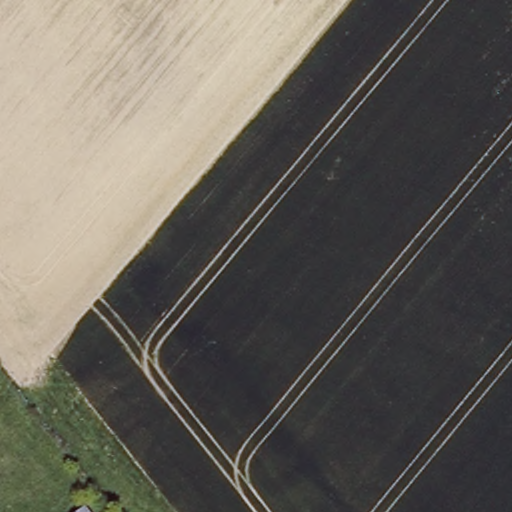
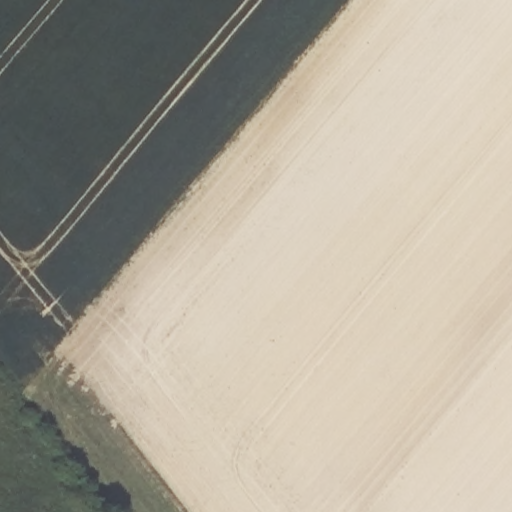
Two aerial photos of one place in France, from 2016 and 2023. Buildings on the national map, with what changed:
unchanged [(90,512),(78,512),(85,506),(90,512)]

